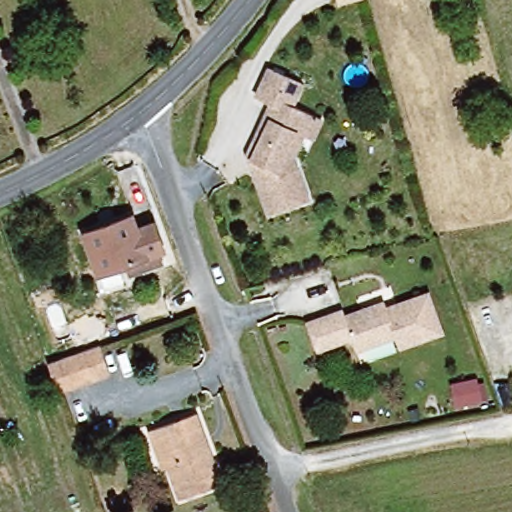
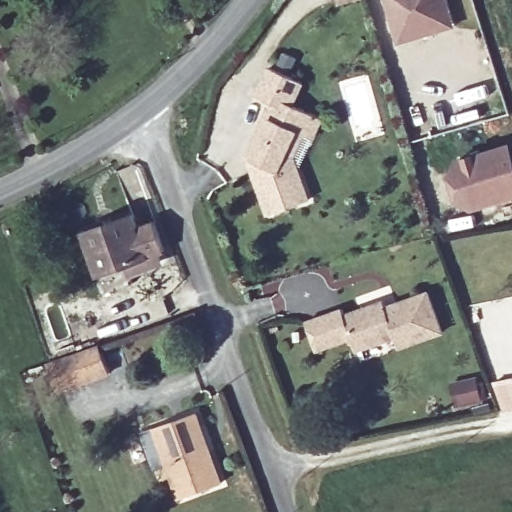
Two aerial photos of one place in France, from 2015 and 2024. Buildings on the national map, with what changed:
unchanged [(338,4),(338,0),(350,0),(338,4)]
new [(386,0),(447,0),(454,26),(447,28),(398,42),(386,0)]
unchanged [(261,126),(270,105),(256,98),(269,69),(301,83),(291,106),(307,114),(320,120),(297,172),(310,203),(270,218),(254,174),(247,157),(261,126)]
new [(512,153),(512,197),(477,208),(462,160),(509,145),(512,153)]
unchanged [(136,227),(152,222),(162,248),(156,251),(159,261),(128,272),(125,263),(98,273),(82,232),(131,214),(136,227)]
unchanged [(441,330),(398,346),(395,335),(356,348),(352,337),(317,349),(307,320),(342,308),(344,313),(385,300),(387,305),(396,302),(427,291),(441,330)]
unchanged [(104,342),(114,372),(61,390),(51,361),(81,350),(104,342)]
unchanged [(450,383),(477,379),(481,406),(455,411),(450,383)]
unchanged [(154,429),(195,414),(220,483),(179,498),(154,429)]

